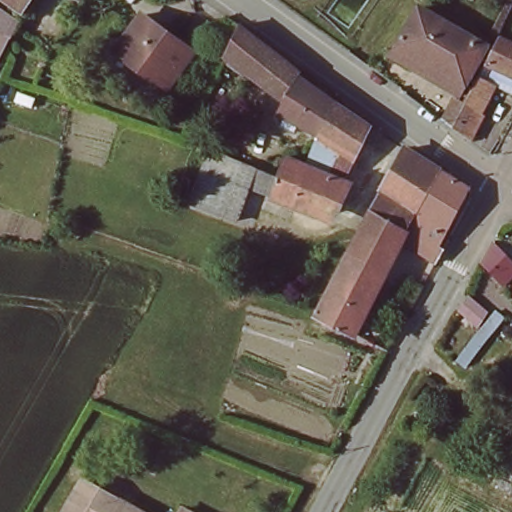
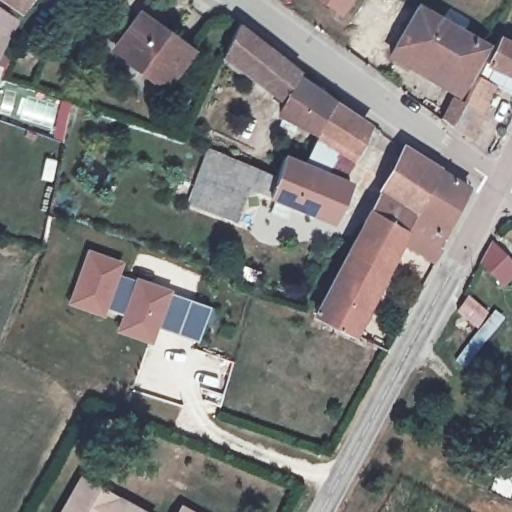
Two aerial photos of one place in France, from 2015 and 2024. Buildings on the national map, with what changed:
unchanged [(8,0),(28,0),(22,10),(8,0)]
unchanged [(481,42),(452,90),(392,51),(420,3),(481,42)]
unchanged [(17,21),(11,39),(4,55),(0,65),(0,9),(17,21)]
unchanged [(119,46),(139,17),(190,54),(167,87),(131,63),(115,52),(119,46)]
unchanged [(334,102),(322,131),(281,115),(286,103),(236,61),(229,68),(222,65),(226,54),(242,24),(264,42),(335,100),(334,102)]
unchanged [(466,97),(480,68),(500,29),(512,36),(512,89),(511,92),(494,85),(482,106),(491,109),(475,137),(453,122),(444,116),(456,94),(466,97)]
new [(61,100),(74,104),(64,141),(51,137),(61,100)]
unchanged [(310,161),(317,144),(322,131),(334,102),(335,100),(364,119),(376,124),(369,139),(362,135),(353,157),(345,175),(310,161)]
unchanged [(411,209),(378,192),(405,144),(407,145),(420,155),(434,167),(432,169),(411,209)]
unchanged [(240,206),(194,189),(207,157),(253,176),(240,206)]
unchanged [(286,158),(308,165),(352,183),(343,204),(328,199),(319,217),(269,197),(280,171),(286,158)]
unchanged [(400,230),(411,209),(432,169),(460,184),(438,230),(445,232),(437,247),(400,230)]
unchanged [(400,230),(437,247),(430,260),(394,242),(346,333),(313,318),(354,239),(365,218),(378,192),(411,209),(400,230)]
unchanged [(482,260),(494,241),(512,258),(512,278),(506,286),(482,260)]
new [(197,342),(158,326),(151,345),(118,332),(123,316),(105,310),(102,317),(69,306),(88,251),(123,263),(119,276),(136,281),(137,278),(172,292),(171,295),(210,308),(197,342)]
new [(247,268),(261,273),(256,286),(242,281),(247,268)]
unchanged [(496,315),(484,330),(464,315),(478,300),(496,315)]
unchanged [(502,452),(512,455),(512,478),(496,472),(502,452)]
unchanged [(136,512),(65,512),(82,483),(136,512)]
unchanged [(196,512),(181,512),(185,506),(196,512)]

